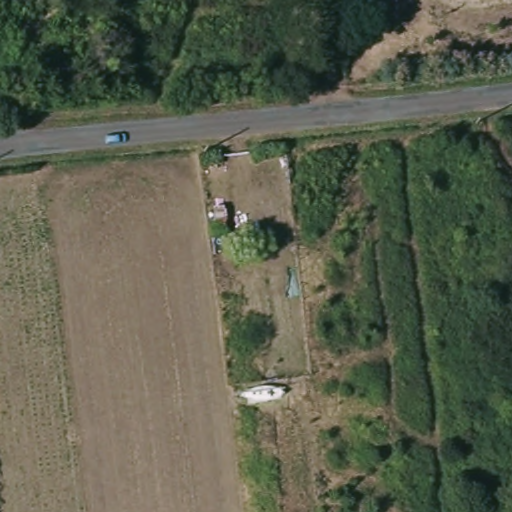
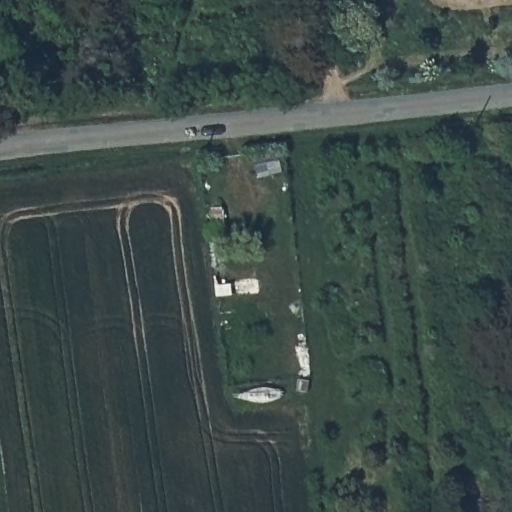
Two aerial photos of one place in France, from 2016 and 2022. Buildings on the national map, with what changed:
unchanged [(213,234),(208,207),(224,204),(231,230),(213,234)]

